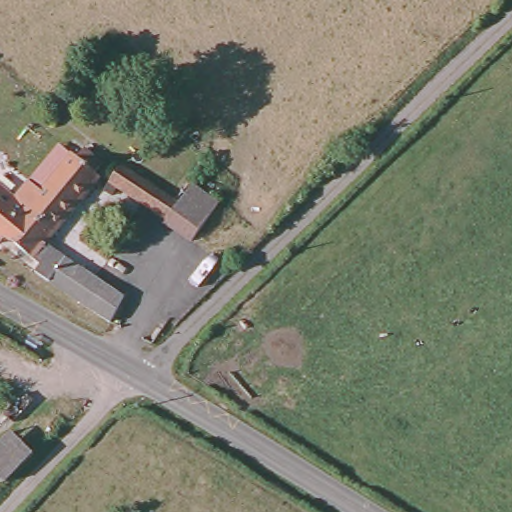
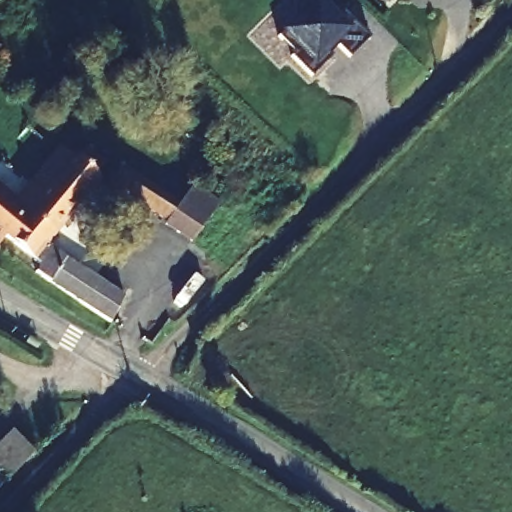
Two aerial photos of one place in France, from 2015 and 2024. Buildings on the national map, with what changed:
new [(346,58),(331,43),(323,50),(329,56),(308,77),(288,56),(291,52),(275,35),(312,0),(327,0),(336,9),(337,7),(366,38),(346,58)]
new [(385,5),(380,0),(391,0),(385,5)]
unchanged [(37,279),(41,273),(8,243),(0,252),(0,193),(17,207),(27,195),(61,152),(75,159),(80,164),(88,154),(107,170),(100,179),(103,182),(48,247),(127,301),(110,326),(37,279)]
unchanged [(122,165),(180,201),(194,182),(221,202),(221,203),(192,243),(164,223),(167,220),(111,182),(122,165)]
unchanged [(6,480),(0,474),(0,439),(11,425),(36,450),(6,480)]

